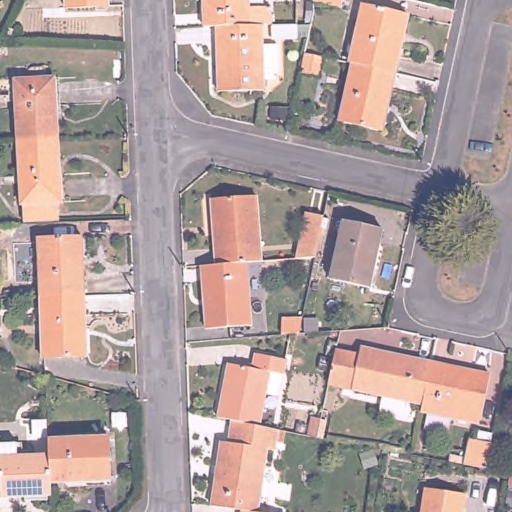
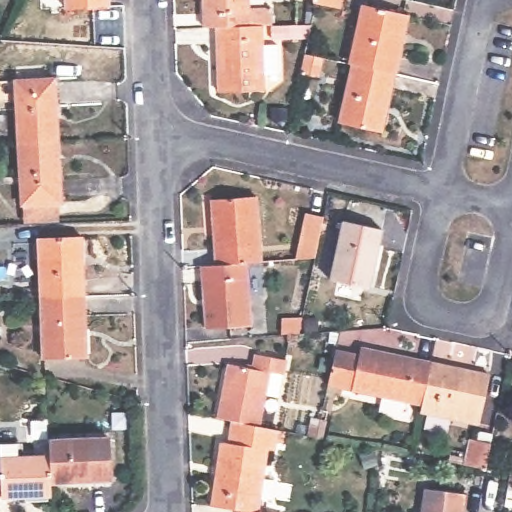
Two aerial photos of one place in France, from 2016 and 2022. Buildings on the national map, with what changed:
unchanged [(112,6),(70,7),(69,0),(112,0),(112,6)]
unchanged [(249,3),(270,2),(270,21),(260,21),(215,22),(202,22),(202,0),(248,0),(249,3)]
unchanged [(311,0),(341,0),(340,6),(311,5),(311,0)]
unchanged [(361,5),(400,14),(406,15),(401,40),(394,74),(351,65),(347,64),(361,5)]
unchanged [(270,35),(270,21),(296,20),(297,34),(270,35)]
unchanged [(280,70),(262,70),(263,85),(218,87),(215,22),(260,21),(261,41),(278,41),(280,70)]
unchanged [(300,74),(304,54),(323,58),(317,78),(300,74)]
unchanged [(351,65),(394,74),(381,132),(338,122),(351,65)]
unchanged [(20,96),(0,96),(0,76),(13,75),(55,73),(56,100),(60,100),(62,135),(21,137),(20,96)]
unchanged [(28,217),(27,200),(25,200),(21,137),(62,135),(64,170),(60,170),(61,197),(62,215),(28,217)]
unchanged [(216,260),(210,195),(256,191),(261,257),(246,258),(216,260)]
unchanged [(295,259),(305,213),(323,216),(315,258),(295,259)]
unchanged [(330,280),(342,221),(382,229),(369,288),(330,280)]
unchanged [(38,297),(35,237),(80,236),(82,295),(38,297)]
unchanged [(200,261),(216,260),(246,258),(252,320),(206,323),(200,261)]
unchanged [(85,356),(40,357),(38,297),(82,295),(85,356)]
unchanged [(281,334),(282,318),(302,317),(300,332),(281,334)]
unchanged [(328,383),(336,348),(358,353),(361,346),(431,362),(422,405),(328,383)]
unchanged [(217,412),(227,357),(251,361),(255,347),(287,353),(284,370),(270,366),(260,420),(231,415),(217,412)]
unchanged [(489,375),(478,424),(421,412),(422,405),(431,362),(489,375)]
unchanged [(211,500),(221,435),(228,436),(231,415),(260,420),(278,423),(275,444),(268,443),(258,506),(241,504),(211,500)]
unchanged [(307,434),(311,415),(321,417),(317,436),(307,434)]
unchanged [(54,438),(112,436),(115,480),(55,482),(55,455),(54,438)]
unchanged [(464,463),(469,437),(491,441),(485,467),(464,463)]
unchanged [(55,455),(55,482),(56,495),(6,496),(4,442),(22,442),(22,456),(55,455)]
unchanged [(420,512),(421,504),(423,490),(435,491),(465,495),(462,512),(420,512)]
unchanged [(258,506),(287,510),(287,512),(240,512),(241,504),(258,506)]

